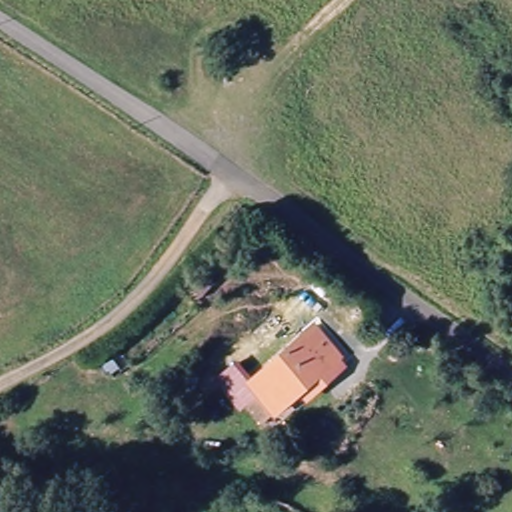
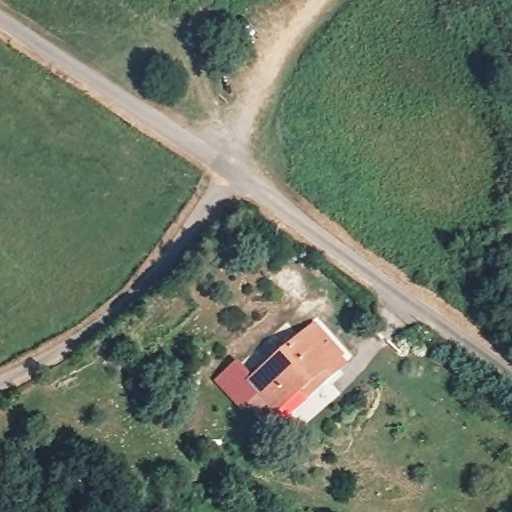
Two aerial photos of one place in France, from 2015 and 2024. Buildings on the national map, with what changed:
unchanged [(209,381),(229,365),(244,384),(309,329),(324,345),(336,360),(332,363),(336,369),(312,389),(309,385),(305,382),(269,413),(266,410),(255,419),(242,403),(234,410),(209,381)]

